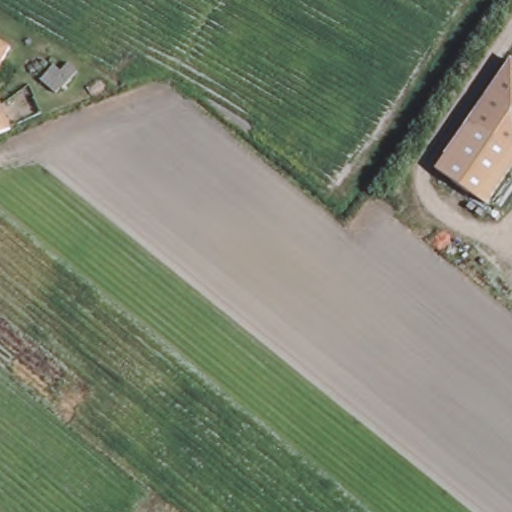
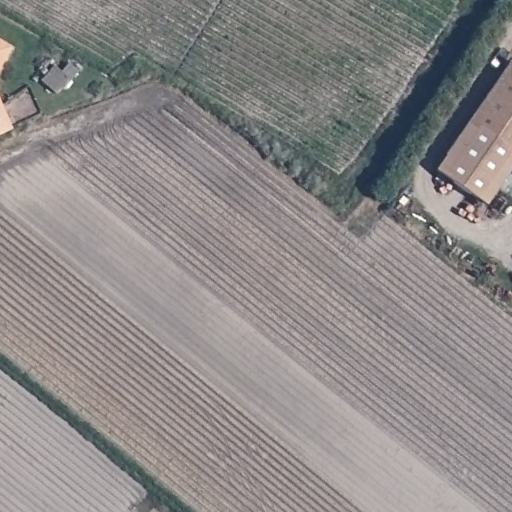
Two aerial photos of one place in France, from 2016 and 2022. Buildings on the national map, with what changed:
unchanged [(0,78),(0,40),(16,50),(0,78)]
unchanged [(484,198),(439,162),(512,70),(512,166),(484,198)]
unchanged [(0,137),(0,86),(18,130),(0,137)]

